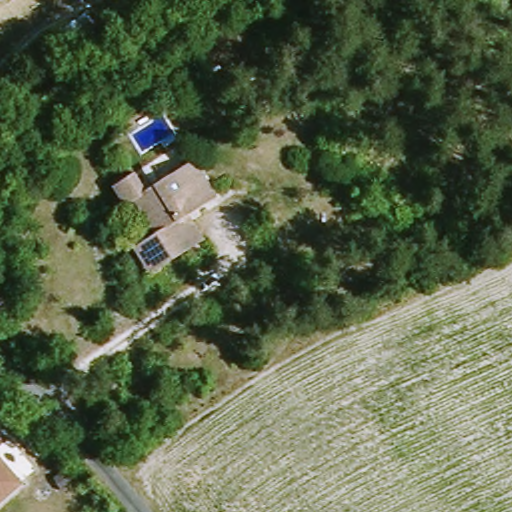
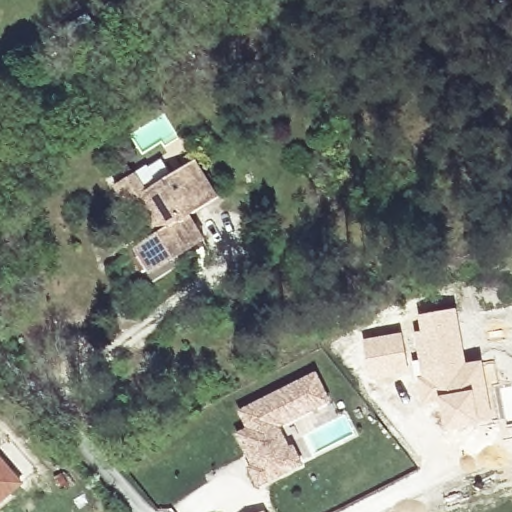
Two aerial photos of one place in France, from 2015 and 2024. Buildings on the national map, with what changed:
new [(155,162),(166,184),(143,196),(133,176),(155,162)]
unchanged [(207,241),(192,249),(145,278),(132,255),(154,240),(135,207),(123,212),(110,189),(133,176),(143,196),(193,166),(215,204),(179,225),(194,217),(207,241)]
new [(414,321),(416,320),(415,315),(457,308),(467,362),(495,358),(501,388),(512,385),(512,421),(504,423),(504,419),(445,432),(433,390),(422,379),(412,330),(416,329),(414,321)]
new [(403,331),(407,355),(367,363),(362,339),(403,331)]
new [(245,469),(250,466),(233,434),(245,428),(237,411),(315,373),(329,402),(279,426),(289,448),(293,446),(301,465),(256,487),(245,469)]
unchanged [(21,481),(0,499),(0,457),(21,481)]
new [(263,510),(264,512),(259,512),(263,510)]

